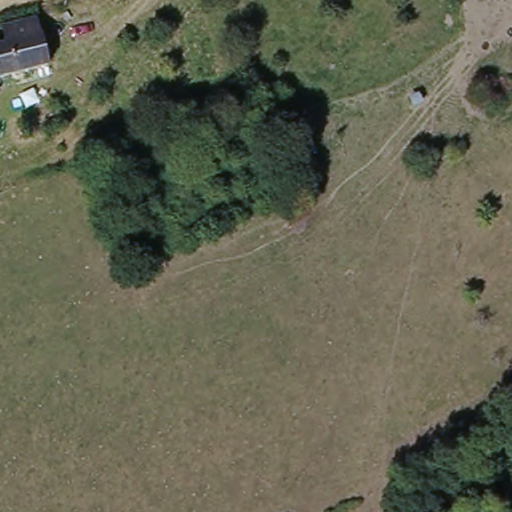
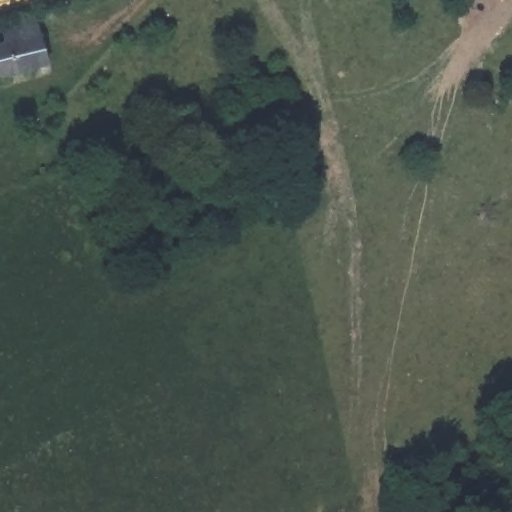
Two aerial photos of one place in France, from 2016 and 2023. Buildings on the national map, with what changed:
unchanged [(8,47),(4,32),(35,24),(50,72),(0,85),(0,50),(8,47)]

